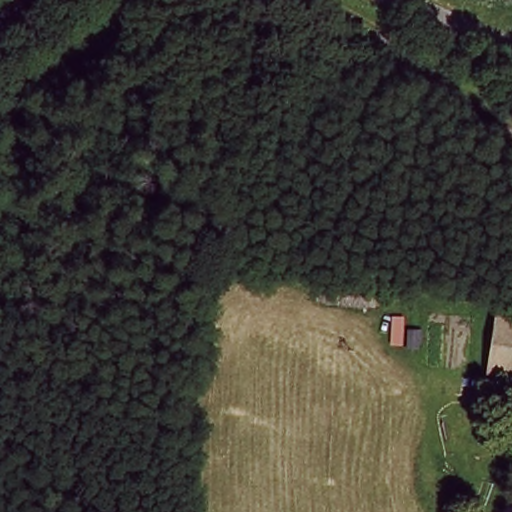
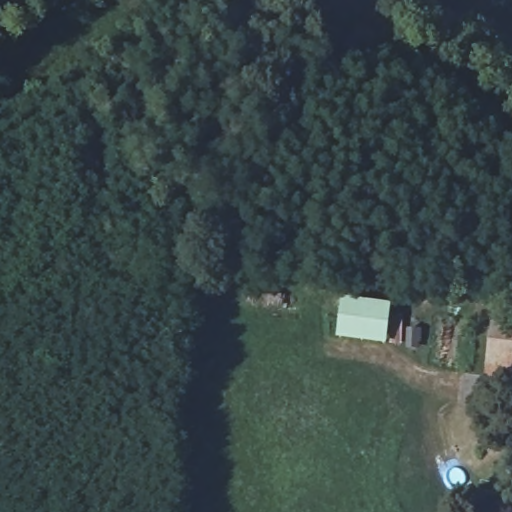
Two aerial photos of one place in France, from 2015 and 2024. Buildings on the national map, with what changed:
new [(341,297),(392,304),(386,345),(335,338),(341,297)]
unchanged [(512,317),(512,378),(489,374),(498,315),(512,317)]

